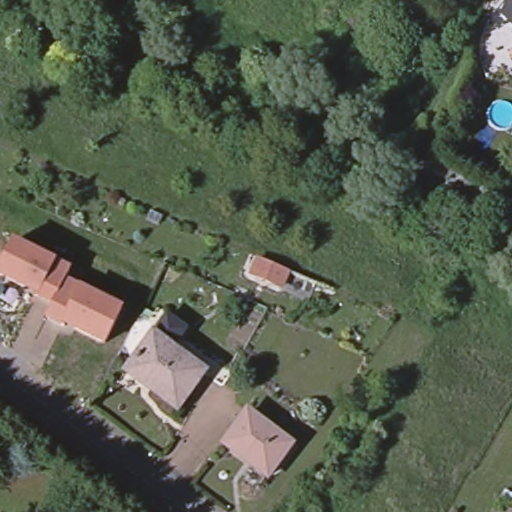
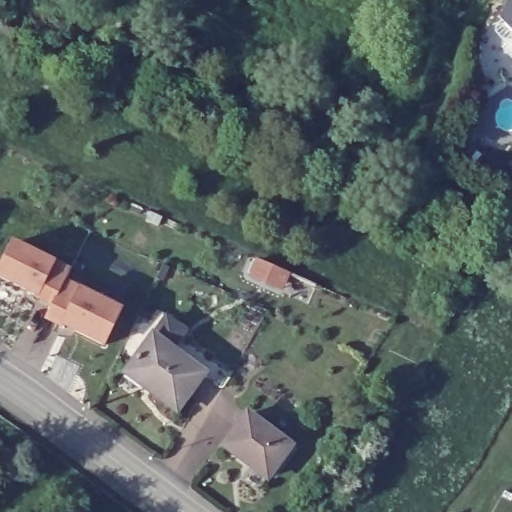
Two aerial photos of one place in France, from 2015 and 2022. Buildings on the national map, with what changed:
unchanged [(500,15),(509,1),(510,0),(512,0),(512,23),(500,15)]
unchanged [(15,245),(72,272),(67,283),(124,310),(107,343),(50,318),(56,305),(39,297),(40,295),(0,276),(15,245)]
unchanged [(292,273),(285,290),(249,274),(255,257),(292,273)]
unchanged [(154,337),(204,374),(177,409),(127,371),(154,337)]
unchanged [(249,414),(293,446),(269,478),(226,445),(249,414)]

